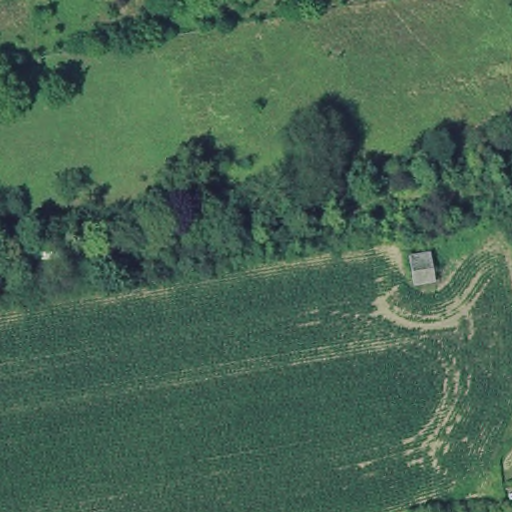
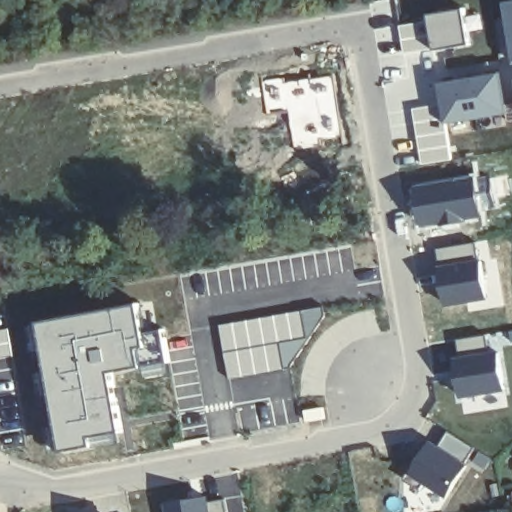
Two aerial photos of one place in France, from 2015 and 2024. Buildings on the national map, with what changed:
new [(509,0),(512,0),(512,59),(503,1),(509,0)]
new [(463,6),(471,44),(432,51),(428,16),(427,14),(463,6)]
new [(428,16),(432,51),(402,54),(397,23),(428,16)]
new [(503,69),(508,113),(446,123),(440,102),(436,82),(503,69)]
new [(440,102),(446,123),(452,159),(420,164),(411,107),(440,102)]
new [(477,173),(484,217),(419,227),(411,184),(477,173)]
new [(445,306),(438,264),(436,247),(476,241),(480,258),(488,299),(445,306)]
demolished [(409,258),(430,255),(432,271),(412,274),(409,258)]
new [(146,330),(162,328),(170,365),(165,366),(153,370),(152,370),(143,369),(113,373),(124,439),(62,452),(40,321),(141,302),(146,330)]
new [(324,305),(326,313),(325,317),(289,368),(228,379),(218,323),(324,305)]
new [(14,356),(0,359),(0,328),(9,326),(14,356)]
new [(459,354),(456,338),(486,334),(488,349),(498,348),(505,390),(455,399),(450,356),(459,354)]
new [(430,437),(438,443),(448,429),(475,447),(466,461),(468,463),(445,497),(406,472),(430,437)]
new [(210,500),(226,498),(227,512),(162,512),(160,502),(208,494),(210,500)]

